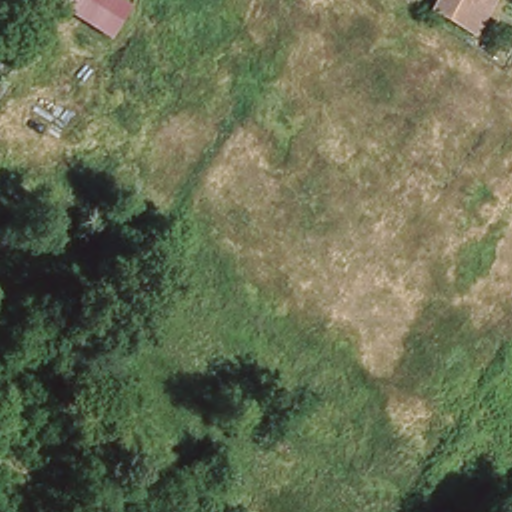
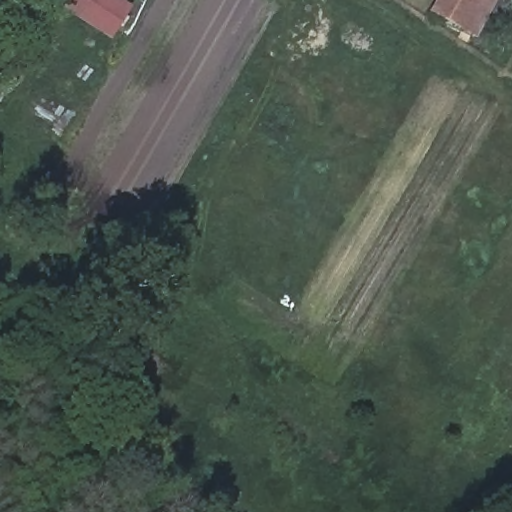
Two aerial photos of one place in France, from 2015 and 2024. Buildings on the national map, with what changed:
unchanged [(67,0),(121,0),(132,7),(108,44),(59,14),(67,0)]
unchanged [(461,30),(428,12),(436,0),(491,0),(470,35),(461,30)]

